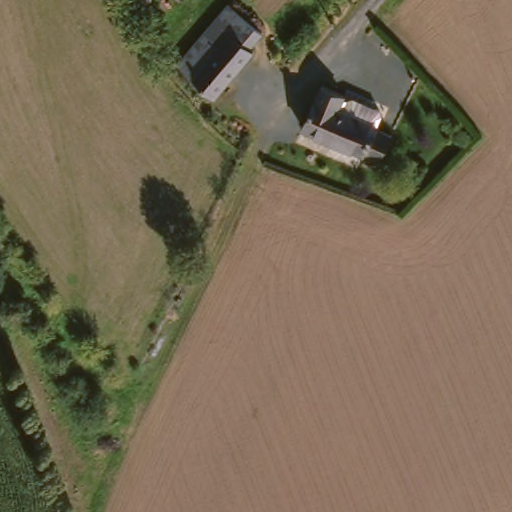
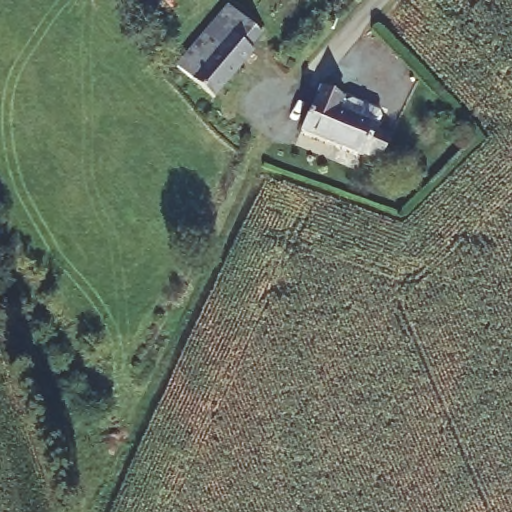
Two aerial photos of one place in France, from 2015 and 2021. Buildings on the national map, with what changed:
unchanged [(257,46),(262,50),(218,96),(184,65),(240,6),(269,34),(257,46)]
unchanged [(377,155),(362,150),(298,123),(320,80),(343,89),(338,104),(375,120),(373,124),(388,130),(377,155)]

